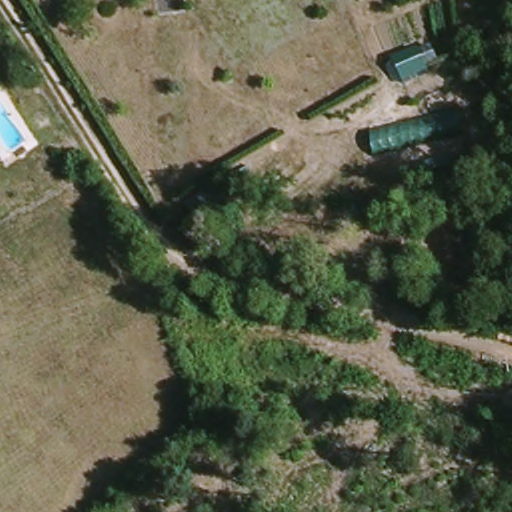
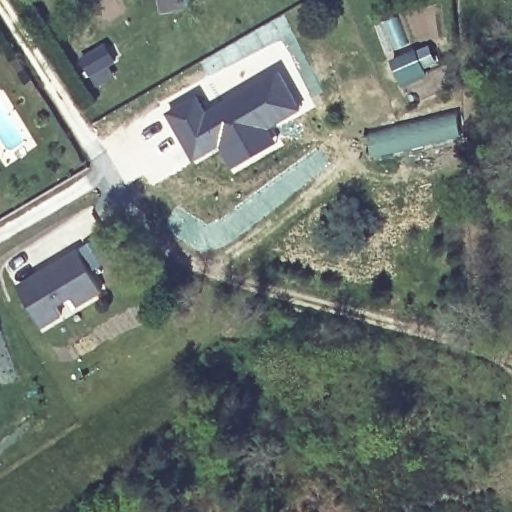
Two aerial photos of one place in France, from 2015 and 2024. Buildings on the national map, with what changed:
new [(105,41),(116,61),(110,65),(117,76),(97,88),(78,57),(105,41)]
unchanged [(1,55),(0,56),(0,53),(1,55)]
unchanged [(425,78),(402,87),(395,69),(418,60),(425,78)]
new [(196,92),(207,107),(223,97),(222,95),(275,64),(301,110),(271,129),(277,142),(231,170),(216,149),(197,161),(164,112),(196,92)]
unchanged [(456,107),(462,133),(375,152),(371,127),(456,107)]
unchanged [(17,285),(79,249),(104,292),(80,307),(75,297),(58,307),(64,316),(44,328),(17,285)]

